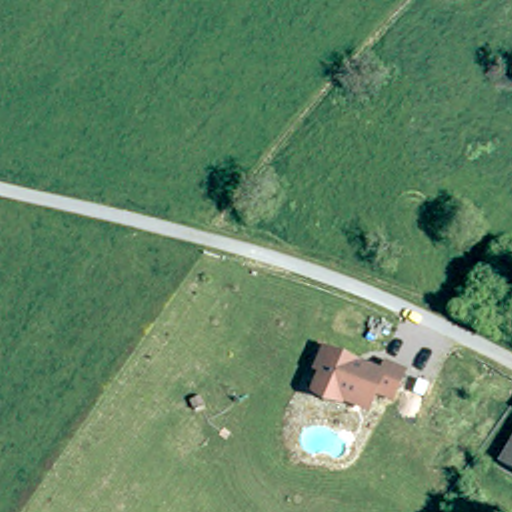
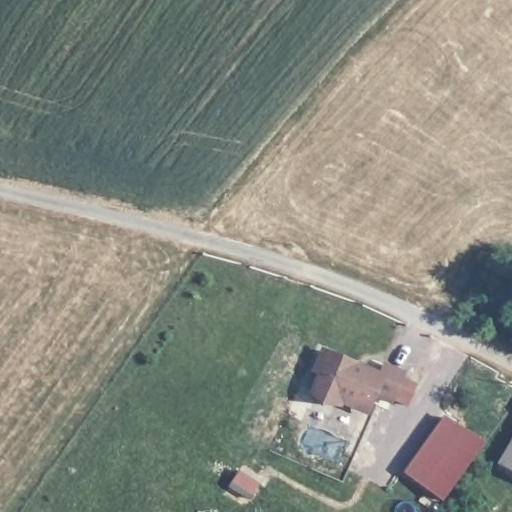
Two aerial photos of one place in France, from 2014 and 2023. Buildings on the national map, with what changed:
unchanged [(511,285),(512,285),(512,337),(488,321),(511,285)]
unchanged [(382,378),(387,368),(405,376),(393,403),(375,395),(367,412),(345,402),(340,400),(338,405),(325,404),(314,395),(324,373),(319,371),(326,354),(382,378)]
new [(443,416),(483,443),(440,502),(402,473),(443,416)]
unchanged [(512,458),(512,477),(504,472),(512,458)]

